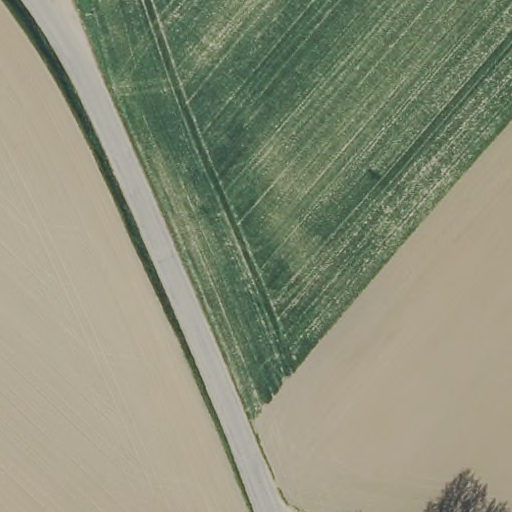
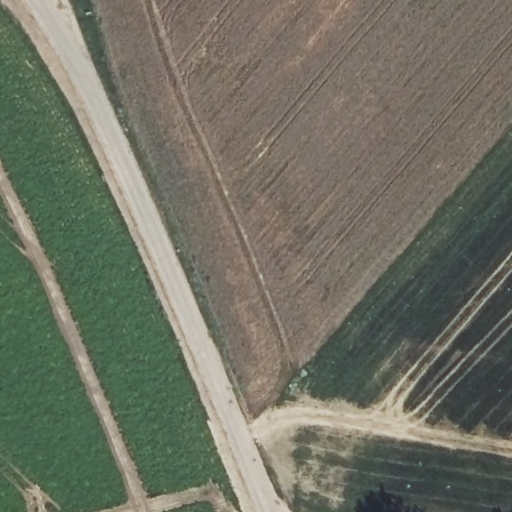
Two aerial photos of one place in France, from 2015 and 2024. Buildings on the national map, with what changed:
[]

